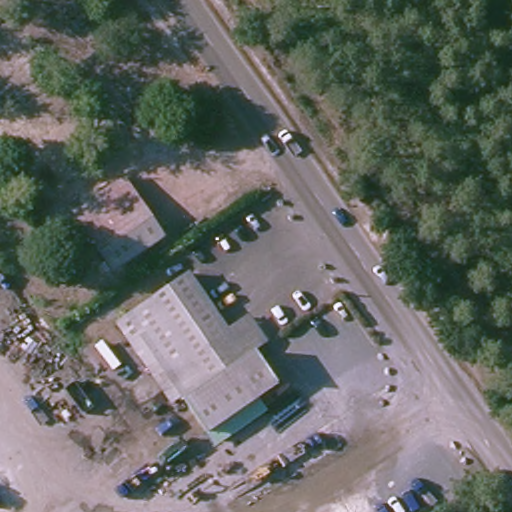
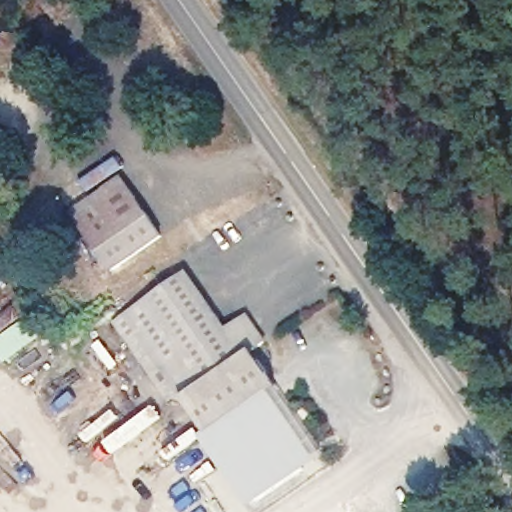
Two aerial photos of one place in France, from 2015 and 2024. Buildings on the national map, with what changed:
unchanged [(110,271),(69,215),(116,178),(158,235),(110,271)]
unchanged [(183,273),(224,329),(245,314),(263,338),(250,348),(274,380),(206,431),(177,392),(123,318),(183,273)]
unchanged [(177,392),(167,400),(112,326),(123,318),(177,392)]
new [(250,510),(198,437),(206,431),(274,380),(325,456),(250,510)]

